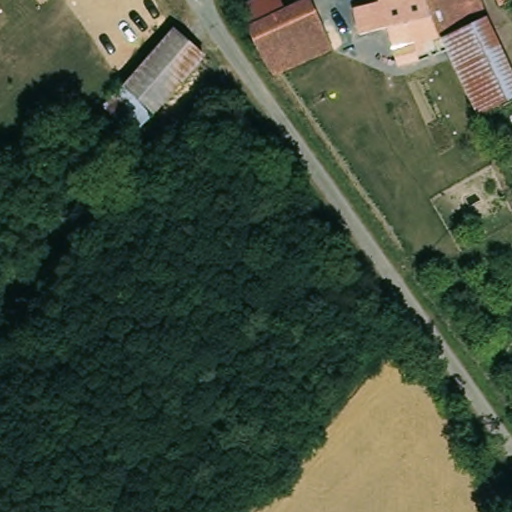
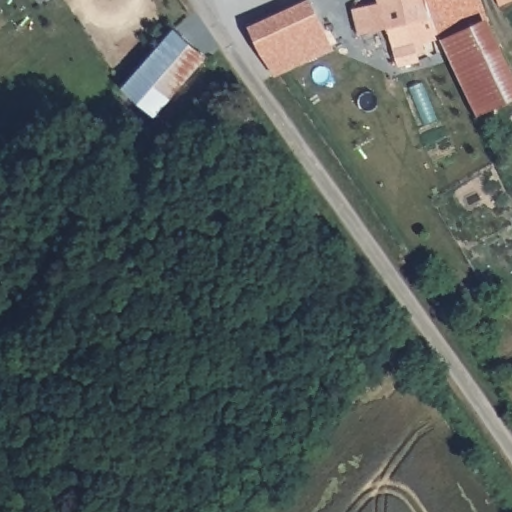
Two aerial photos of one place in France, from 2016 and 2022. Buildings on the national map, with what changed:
unchanged [(247,0),(279,0),(282,7),(301,0),(309,0),(340,65),(297,82),(295,81),(277,87),(234,6),(247,0)]
unchanged [(440,37),(429,41),(432,55),(418,58),(418,61),(397,66),(386,27),(359,34),(352,8),(379,2),(379,0),(427,0),(440,37)]
unchanged [(487,25),(440,37),(427,0),(479,0),(487,25)]
unchanged [(495,0),(512,0),(512,1),(497,6),(495,0)]
unchanged [(512,98),(477,115),(440,37),(487,25),(512,76),(512,98)]
unchanged [(111,97),(159,41),(189,67),(140,122),(111,97)]

